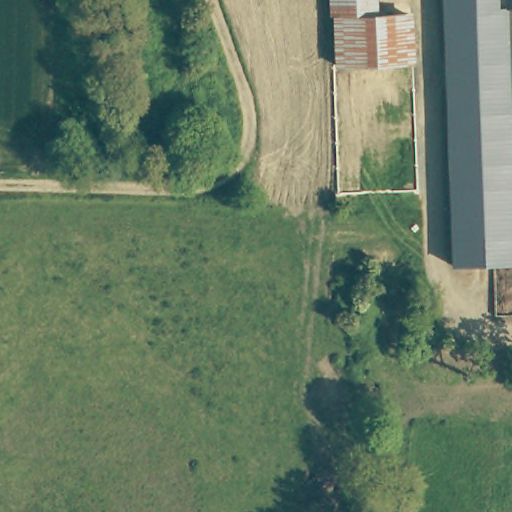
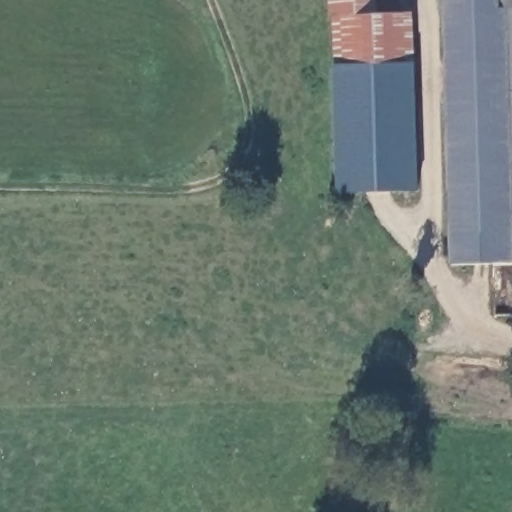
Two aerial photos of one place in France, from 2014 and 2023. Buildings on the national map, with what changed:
new [(332,66),(335,66),(332,18),(329,17),(328,0),(378,0),(378,15),(413,12),(418,192),(337,195),(332,66)]
unchanged [(446,186),(441,0),(512,0),(512,268),(448,270),(446,186)]

